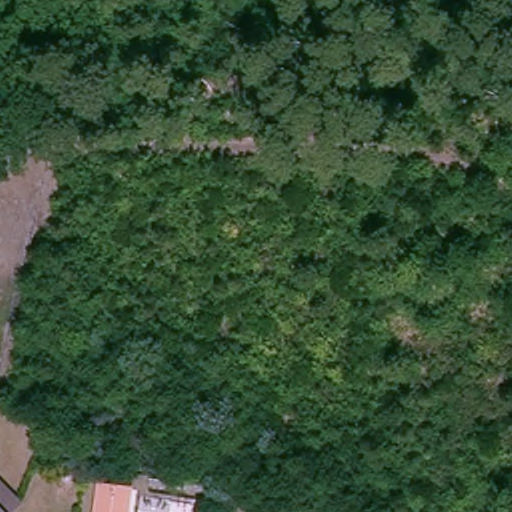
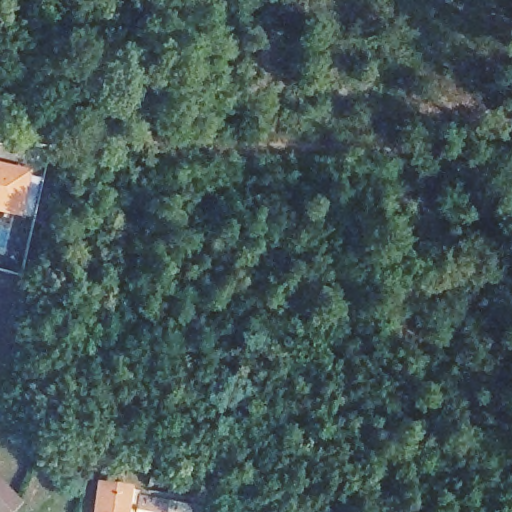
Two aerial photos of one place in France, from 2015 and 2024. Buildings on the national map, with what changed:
new [(28,169),(19,216),(0,212),(0,163),(28,169)]
unchanged [(24,503),(16,512),(0,512),(0,479),(24,503)]
unchanged [(92,512),(94,480),(133,484),(128,512),(92,512)]

